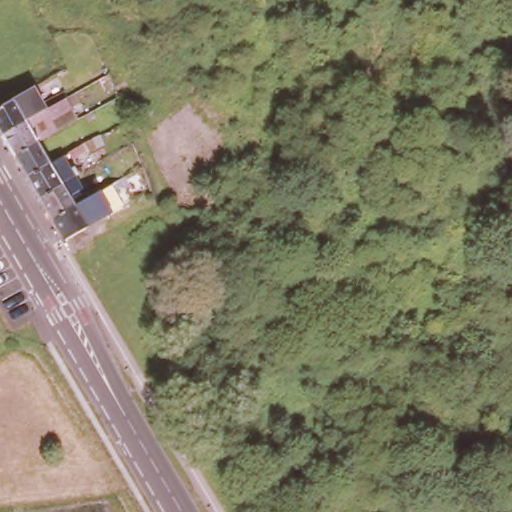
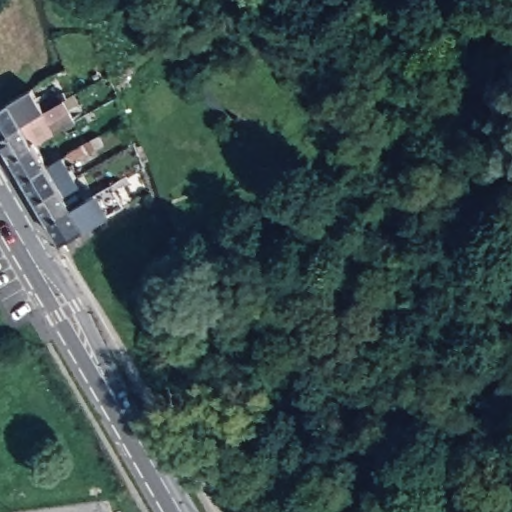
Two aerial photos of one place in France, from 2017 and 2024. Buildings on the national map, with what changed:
unchanged [(13,152),(0,131),(0,102),(21,90),(32,84),(40,99),(54,92),(63,88),(65,94),(78,87),(83,97),(71,103),(78,115),(45,134),(58,155),(63,152),(74,172),(86,194),(98,215),(84,224),(61,237),(49,215),(36,194),(25,174),(13,152)]
unchanged [(69,149),(66,144),(80,137),(83,141),(85,145),(80,148),(71,153),(69,149)]
unchanged [(143,173),(138,176),(136,170),(133,165),(139,162),(141,167),(143,173)]

